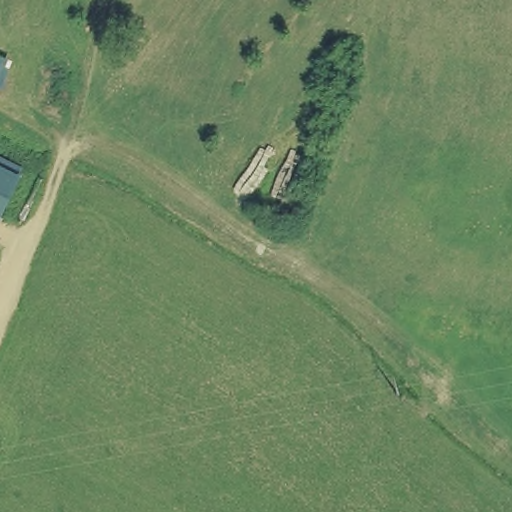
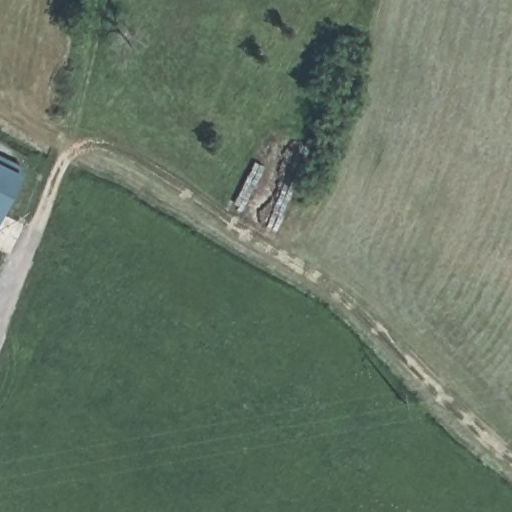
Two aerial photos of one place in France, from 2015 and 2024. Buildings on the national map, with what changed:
unchanged [(0,212),(0,161),(19,170),(0,212)]

